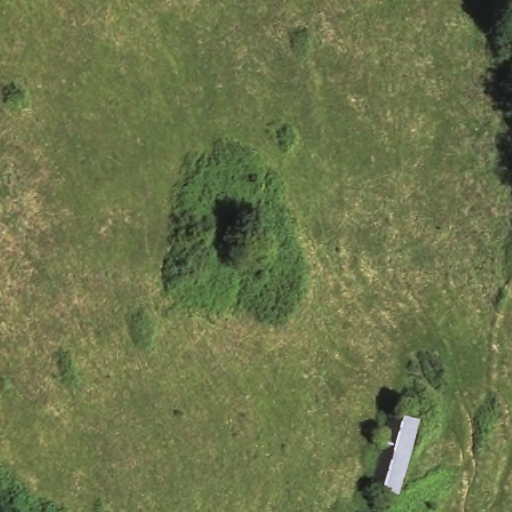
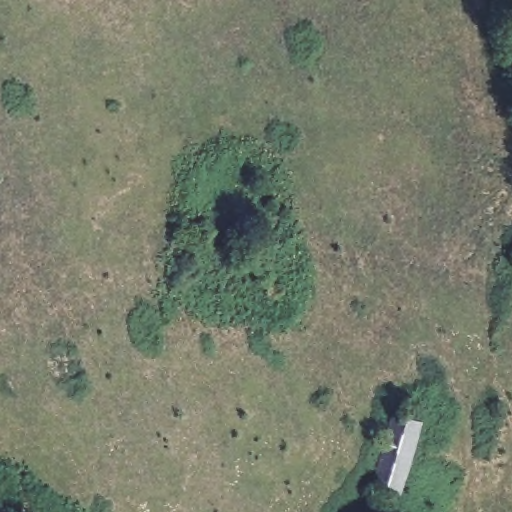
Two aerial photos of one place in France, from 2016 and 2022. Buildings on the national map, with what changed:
unchanged [(389,410),(425,420),(415,457),(403,496),(368,486),(389,410)]

